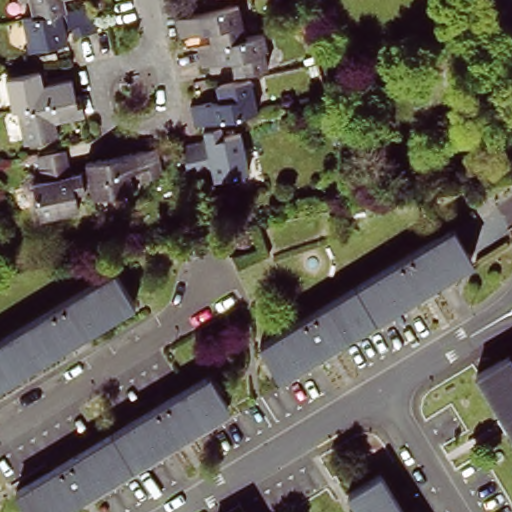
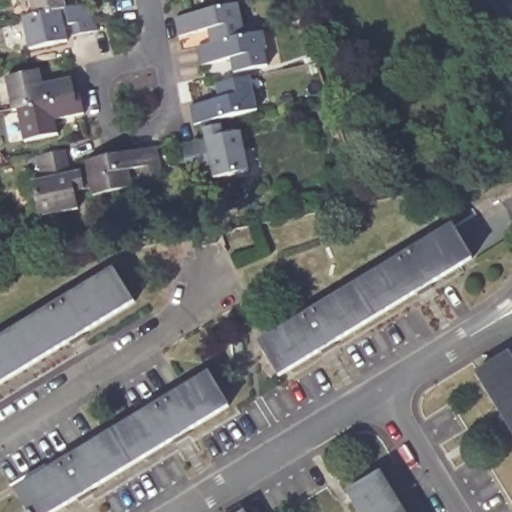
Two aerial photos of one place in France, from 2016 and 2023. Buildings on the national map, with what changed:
unchanged [(66,4),(84,0),(87,0),(89,10),(94,9),(96,16),(98,26),(76,30),(73,20),(66,21),(69,36),(30,44),(23,13),(33,11),(66,4)]
unchanged [(33,11),(31,0),(66,0),(66,4),(33,11)]
unchanged [(213,43),(211,30),(181,36),(177,18),(199,13),(239,4),(246,36),(213,43)]
unchanged [(199,46),(213,43),(246,36),(264,31),(268,46),(264,48),(269,64),(234,71),(232,59),(203,65),(202,60),(199,46)]
unchanged [(11,111),(5,78),(40,70),(43,83),(72,78),(75,98),(19,109),(11,111)]
unchanged [(221,118),(204,121),(194,124),(191,106),(198,104),(221,99),(216,84),(251,76),(258,110),(221,118)]
unchanged [(75,98),(83,96),(86,114),(56,120),(58,133),(25,140),(19,109),(75,98)]
unchanged [(190,173),(184,144),(208,139),(204,121),(221,118),(224,135),(243,131),(251,171),(216,177),(214,168),(199,171),(190,173)]
unchanged [(93,186),(89,167),(88,159),(158,144),(159,152),(163,171),(141,176),(139,166),(129,169),(133,185),(94,194),(93,186)]
unchanged [(65,147),(70,171),(89,167),(93,186),(75,190),(78,206),(41,213),(34,179),(43,177),(38,153),(61,148),(65,147)]
unchanged [(457,224),(477,256),(381,314),(361,283),(457,224)]
unchanged [(133,301),(16,372),(0,344),(0,338),(113,270),(133,301)]
unchanged [(334,342),(285,372),(266,341),(361,283),(381,314),(334,342)]
unchanged [(0,344),(16,372),(0,382),(0,344)]
unchanged [(504,428),(473,375),(504,356),(512,369),(512,440),(504,428)]
unchanged [(208,373),(228,405),(131,464),(111,432),(208,373)]
unchanged [(111,432),(131,464),(52,512),(30,512),(16,489),(111,432)]
unchanged [(351,493),(383,473),(407,512),(363,512),(351,493)]

